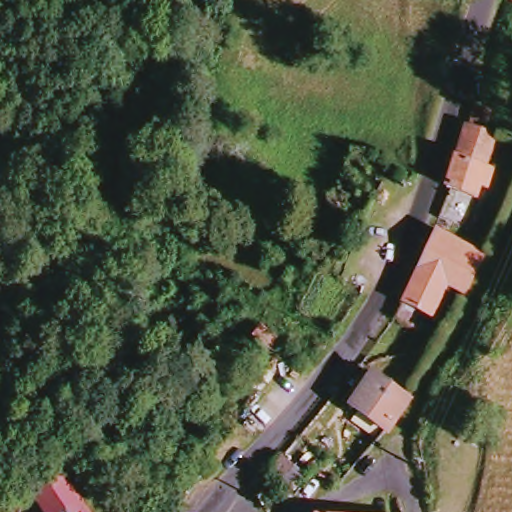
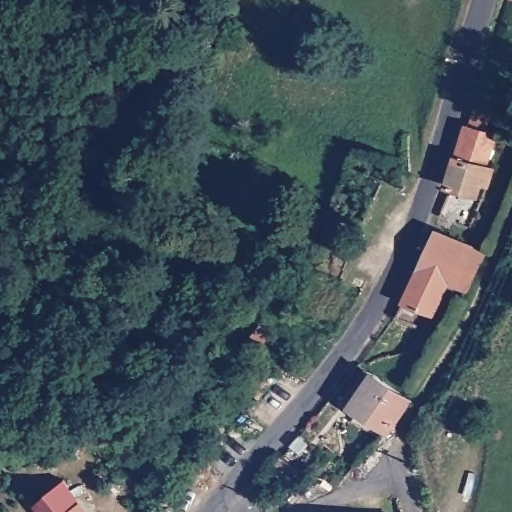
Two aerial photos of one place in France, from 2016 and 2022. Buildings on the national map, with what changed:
unchanged [(510,0),(512,0),(512,4),(509,3),(510,0)]
unchanged [(446,191),(467,126),(475,129),(482,109),(497,116),(489,136),(499,139),(479,204),(446,191)]
unchanged [(427,315),(420,331),(398,321),(439,229),(470,246),(487,254),(492,258),(471,292),(453,282),(436,318),(427,315)]
unchanged [(408,400),(384,433),(347,407),(352,397),(367,373),(403,396),(408,400)]
unchanged [(89,512),(45,512),(73,486),(89,512)]

